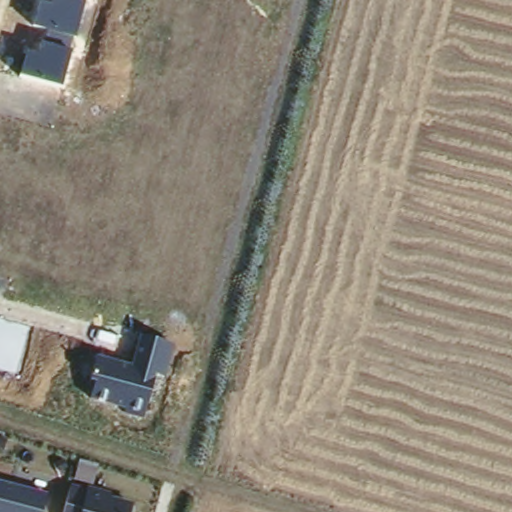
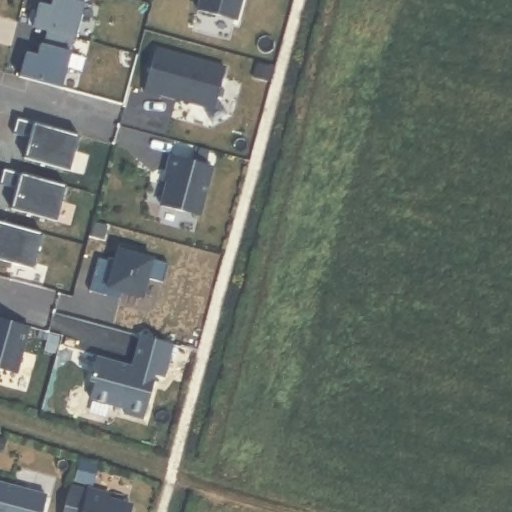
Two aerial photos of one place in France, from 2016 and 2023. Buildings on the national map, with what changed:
unchanged [(17,77),(24,52),(38,56),(41,41),(45,42),(49,29),(34,25),(40,2),(51,4),(52,0),(86,0),(62,87),(17,77)]
new [(199,12),(202,0),(243,0),(237,22),(199,12)]
new [(156,49),(225,67),(215,103),(209,107),(160,94),(160,96),(144,91),(156,49)]
new [(34,124),(77,136),(68,169),(24,155),(28,137),(12,132),(16,119),(34,124)]
new [(172,171),(169,170),(173,154),(214,165),(201,214),(163,204),(172,171)]
new [(21,174),(64,185),(55,220),(11,209),(16,189),(0,186),(0,178),(2,169),(21,174)]
new [(40,234),(32,266),(0,257),(0,222),(40,234)]
new [(107,296),(89,291),(98,258),(114,262),(120,244),(136,248),(135,254),(168,263),(163,282),(147,278),(142,297),(122,292),(120,299),(107,296)]
unchanged [(30,327),(17,374),(0,370),(0,319),(30,327)]
unchanged [(174,344),(164,379),(156,377),(143,420),(122,415),(123,408),(89,400),(93,383),(89,382),(96,355),(130,365),(139,334),(174,344)]
unchanged [(112,493),(111,497),(133,503),(130,512),(62,512),(70,482),(112,493)]
unchanged [(44,496),(40,512),(0,512),(0,483),(44,496)]

